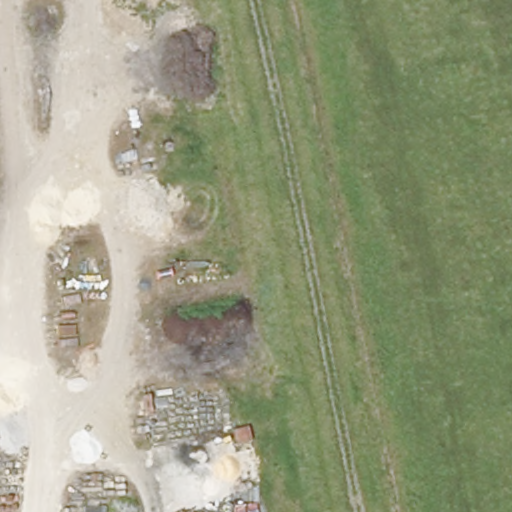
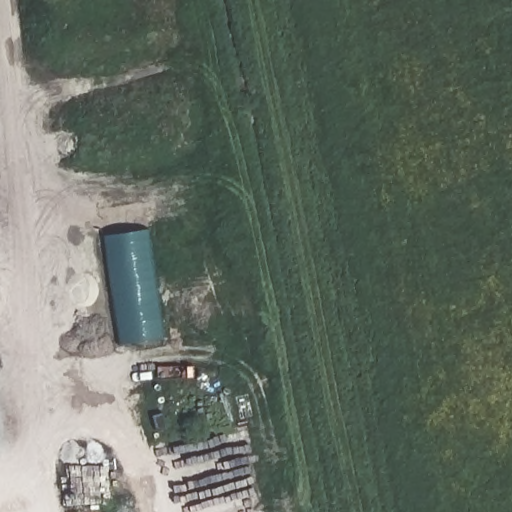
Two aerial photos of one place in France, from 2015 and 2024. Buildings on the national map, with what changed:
new [(150,227),(166,337),(121,344),(105,235),(150,227)]

